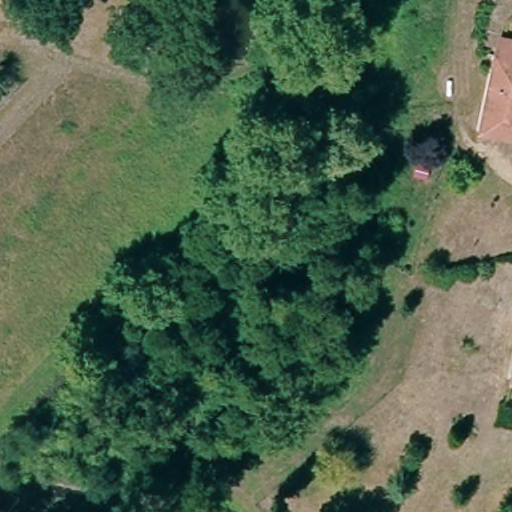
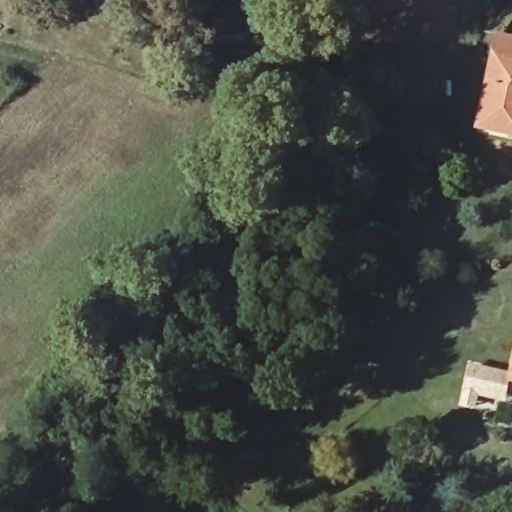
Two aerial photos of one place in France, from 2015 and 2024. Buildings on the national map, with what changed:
unchanged [(476,129),(494,56),(498,40),(512,43),(512,140),(476,129)]
new [(511,384),(507,402),(465,393),(471,365),(512,373),(512,384),(511,384)]

